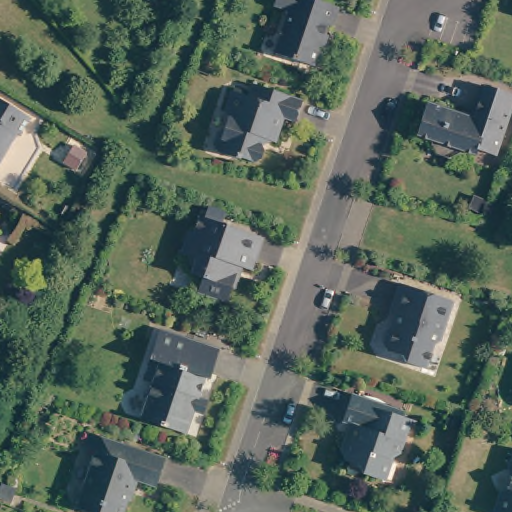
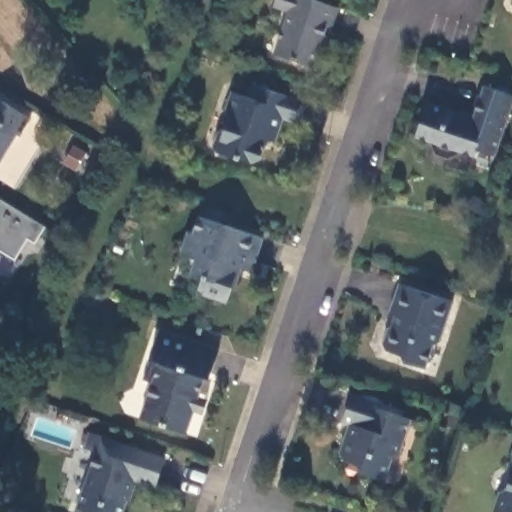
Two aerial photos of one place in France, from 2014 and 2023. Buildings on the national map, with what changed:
unchanged [(320,59),(317,57),(314,64),(273,51),(287,9),(273,5),(272,1),(272,0),(320,0),(339,6),(333,21),(329,20),(325,32),(329,34),(320,59)]
unchanged [(477,153),(465,149),(449,156),(437,153),(432,140),(433,136),(418,132),(428,100),(474,114),(484,84),(512,93),(512,101),(498,145),(495,152),(479,147),(477,153)]
unchanged [(288,124),(279,121),(271,145),(259,141),(255,145),(257,152),(254,161),(249,165),(236,159),(234,163),(209,153),(207,149),(211,135),(219,133),(224,120),(219,112),(224,95),(240,100),(245,86),(251,89),(295,102),(288,124)]
unchanged [(30,117),(20,135),(17,134),(0,161),(0,100),(30,117)]
new [(36,245),(27,240),(13,260),(0,252),(0,198),(47,226),(36,245)]
unchanged [(262,240),(251,270),(238,266),(227,303),(198,294),(202,279),(194,276),(198,261),(182,256),(189,234),(195,235),(199,218),(262,240)]
demolished [(0,240),(0,221),(8,226),(0,240)]
unchanged [(449,302),(435,340),(428,345),(420,367),(400,360),(398,355),(380,351),(378,346),(384,328),(388,328),(391,315),(387,313),(396,285),(449,302)]
unchanged [(204,413),(195,411),(189,434),(145,420),(156,385),(146,381),(162,333),(219,352),(210,380),(206,379),(199,398),(208,401),(204,413)]
unchanged [(352,397),(386,406),(407,413),(403,421),(410,423),(400,455),(390,462),(383,482),(361,475),(358,466),(347,462),(342,454),(348,433),(350,426),(343,424),(352,397)]
unchanged [(138,477),(125,512),(104,512),(82,504),(100,449),(91,445),(96,430),(104,433),(170,455),(160,485),(138,477)]
unchanged [(506,489),(510,477),(507,471),(512,455),(512,512),(493,512),(498,493),(506,489)]
unchanged [(10,505),(0,502),(0,491),(1,487),(15,490),(10,505)]

